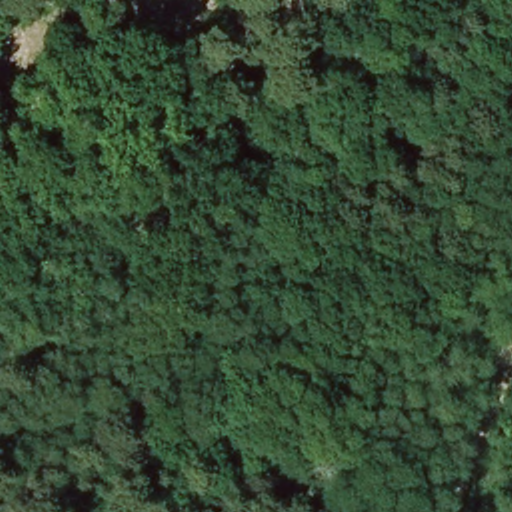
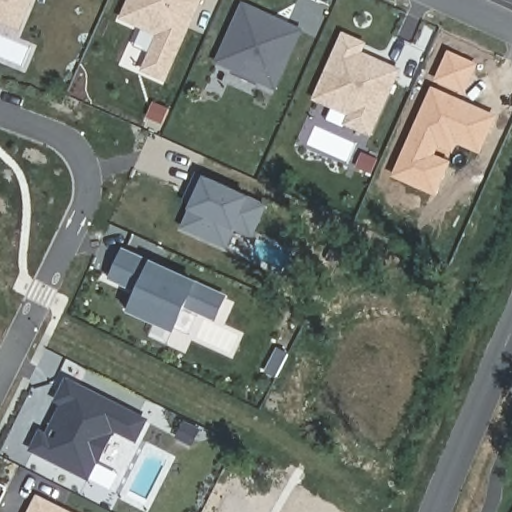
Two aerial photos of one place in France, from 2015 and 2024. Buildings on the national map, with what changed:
new [(0,22),(0,0),(36,0),(23,31),(0,22)]
new [(144,70),(163,30),(146,23),(144,27),(123,18),(131,0),(201,0),(166,80),(144,70)]
new [(303,28),(279,90),(219,61),(242,1),(303,28)]
new [(365,45),(361,54),(384,64),(400,71),(371,135),(348,125),(353,111),(337,104),(335,109),(316,100),(345,36),(365,45)]
new [(451,55),(476,66),(465,91),(439,80),(451,55)]
new [(435,91),(495,118),(480,151),(456,141),(452,150),(438,143),(432,157),(448,164),(435,193),(396,175),(435,91)]
new [(269,205),(254,239),(237,231),(230,249),(184,231),(193,207),(185,203),(198,174),(269,205)]
new [(227,299),(218,320),(187,307),(177,329),(130,310),(139,291),(115,279),(126,252),(227,299)]
new [(138,438),(115,427),(90,476),(35,448),(43,432),(59,440),(64,431),(54,426),(59,417),(66,402),(60,399),(69,379),(147,419),(138,438)]
new [(192,445),(178,437),(185,423),(200,430),(192,445)]
new [(39,496),(71,512),(30,512),(39,496)]

